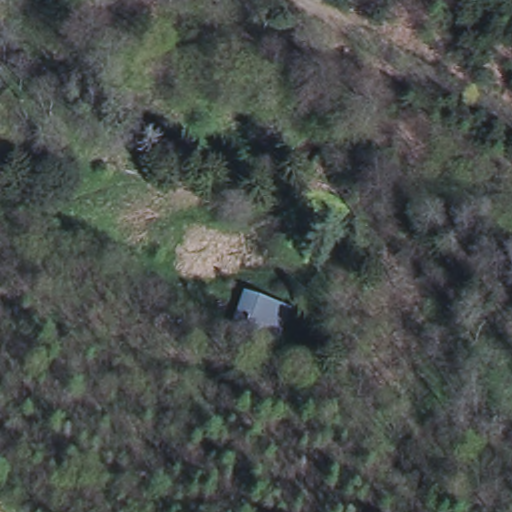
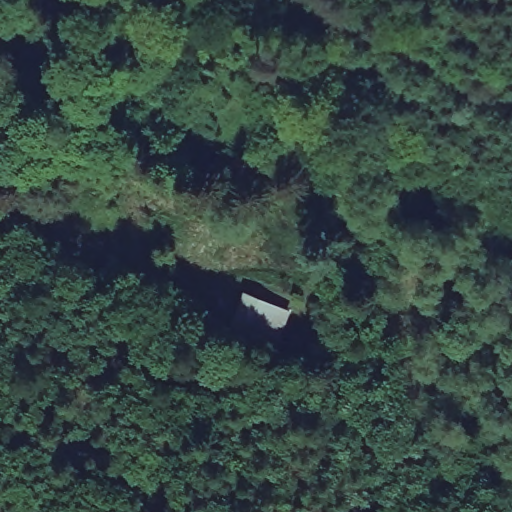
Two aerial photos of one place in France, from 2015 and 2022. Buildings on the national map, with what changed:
unchanged [(231,328),(245,295),(287,311),(272,344),(270,350),(248,342),(250,336),(231,328)]

